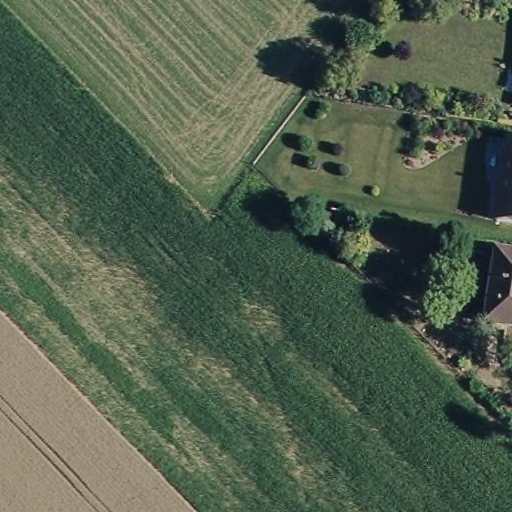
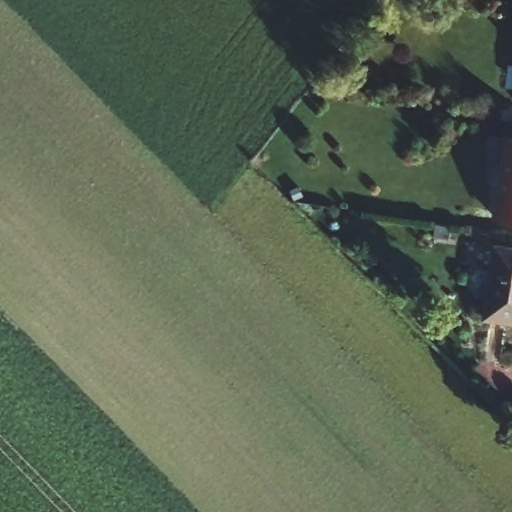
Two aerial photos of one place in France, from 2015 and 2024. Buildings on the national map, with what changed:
unchanged [(285,141),(297,145),(284,180),(272,176),(285,141)]
unchanged [(511,141),(512,141),(512,216),(500,215),(511,141)]
unchanged [(501,246),(512,247),(512,318),(490,315),(501,246)]

